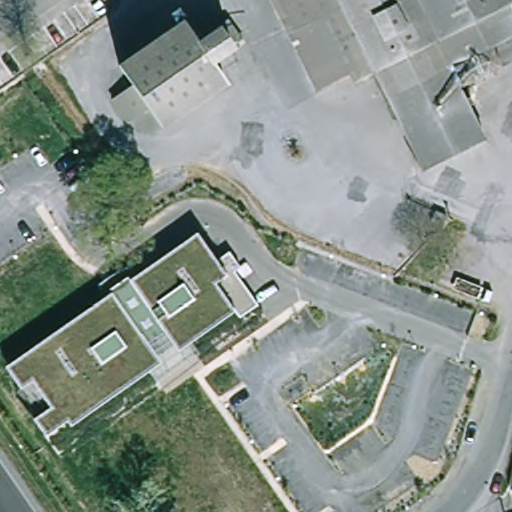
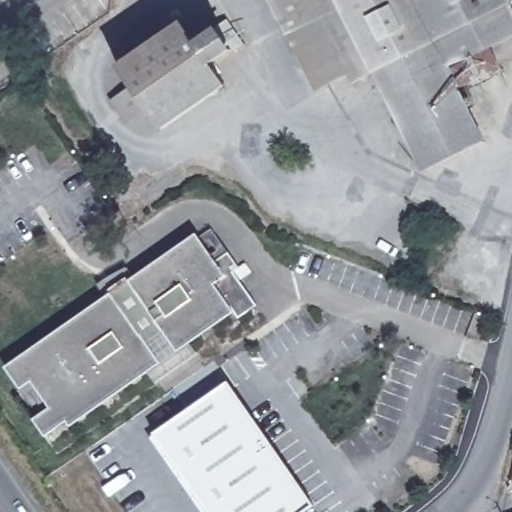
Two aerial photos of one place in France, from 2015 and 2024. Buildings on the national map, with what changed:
unchanged [(356,83),(350,72),(318,88),(274,0),(512,0),(512,5),(376,74),(356,83)]
unchanged [(453,69),(389,100),(376,74),(512,5),(512,38),(453,69)]
unchanged [(121,60),(186,16),(200,36),(231,15),(248,39),(216,60),(231,81),(166,125),(151,104),(130,119),(119,102),(118,101),(119,91),(120,90),(134,81),(121,62),(120,61),(121,60)]
unchanged [(453,69),(488,140),(424,172),(389,100),(453,69)]
unchanged [(434,212),(446,216),(441,229),(429,224),(434,212)]
unchanged [(88,403),(85,397),(73,369),(75,367),(93,335),(95,294),(148,259),(186,233),(206,261),(219,252),(229,267),(223,271),(246,305),(228,317),(223,311),(188,335),(163,352),(144,323),(129,333),(148,362),(88,403)]
unchanged [(19,416),(36,405),(18,378),(12,382),(0,365),(0,358),(91,297),(88,332),(93,335),(75,367),(73,369),(69,371),(81,400),(53,419),(31,434),(19,416)]
new [(314,505),(305,512),(209,512),(153,432),(228,381),(314,505)]

